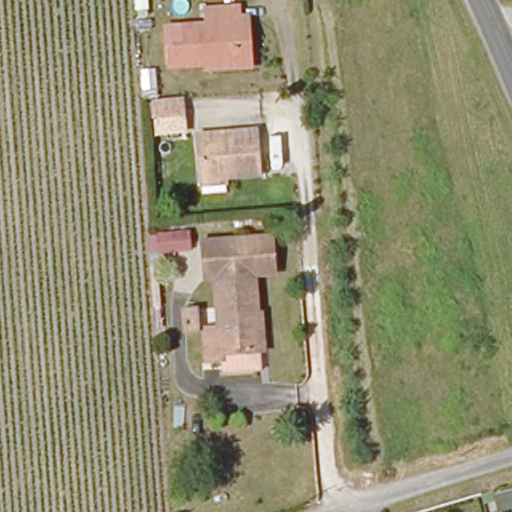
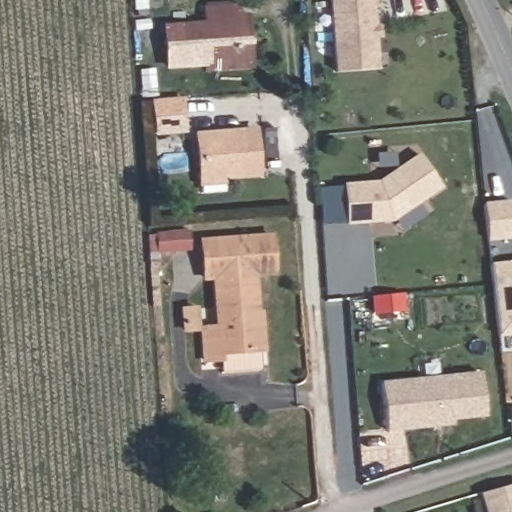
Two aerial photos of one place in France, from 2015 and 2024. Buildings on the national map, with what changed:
new [(372,21),(377,21),(377,31),(373,32),(376,68),(335,72),(328,0),(370,0),(372,21)]
unchanged [(245,57),(232,58),(218,60),(167,66),(163,25),(204,19),(204,6),(214,5),(234,4),(235,16),(243,16),(245,57)]
unchanged [(183,96),(184,114),(154,116),(153,99),(183,96)]
unchanged [(224,130),(253,127),(257,176),(229,179),(224,130)]
unchanged [(203,181),(199,132),(224,130),(229,179),(203,181)]
new [(375,181),(415,152),(438,184),(389,218),(344,222),(340,184),(375,181)]
new [(509,200),(512,227),(512,235),(486,238),(482,204),(509,200)]
unchanged [(192,253),(161,253),(161,233),(193,231),(192,253)]
unchanged [(280,270),(255,272),(264,345),(230,350),(230,358),(211,360),(208,329),(226,326),(222,275),(210,275),(207,238),(234,235),(275,232),(280,270)]
new [(501,351),(499,333),(489,263),(512,261),(512,350),(501,351)]
unchanged [(198,306),(200,325),(213,324),(210,275),(222,275),(226,326),(208,329),(211,360),(203,361),(200,333),(184,334),(180,307),(198,306)]
new [(481,372),(486,418),(453,421),(453,427),(387,432),(382,382),(481,372)]
new [(512,486),(512,512),(486,512),(482,494),(512,486)]

